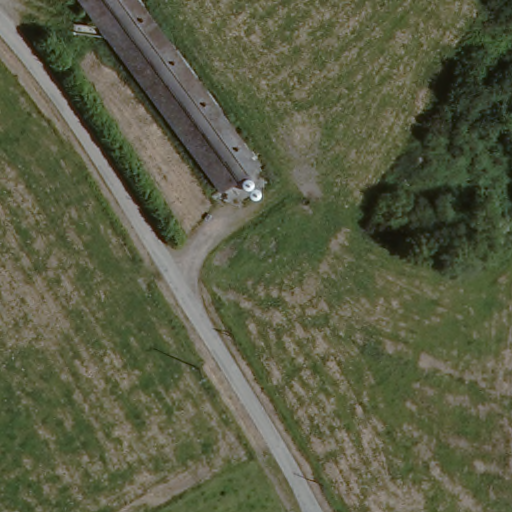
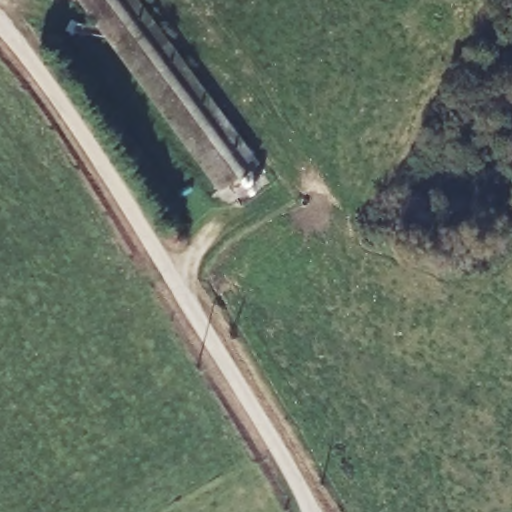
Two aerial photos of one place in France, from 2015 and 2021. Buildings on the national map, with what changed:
unchanged [(130,0),(257,158),(218,190),(67,0),(130,0)]

